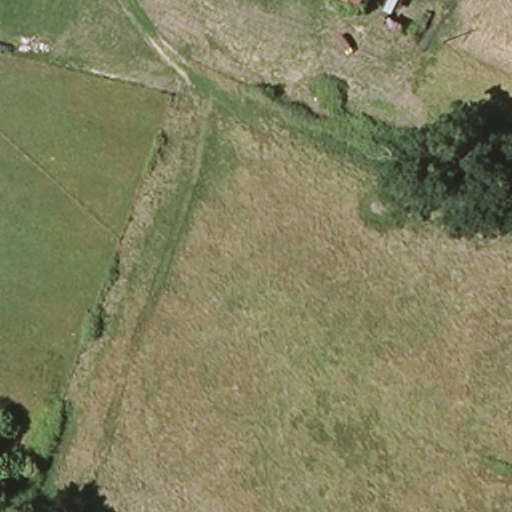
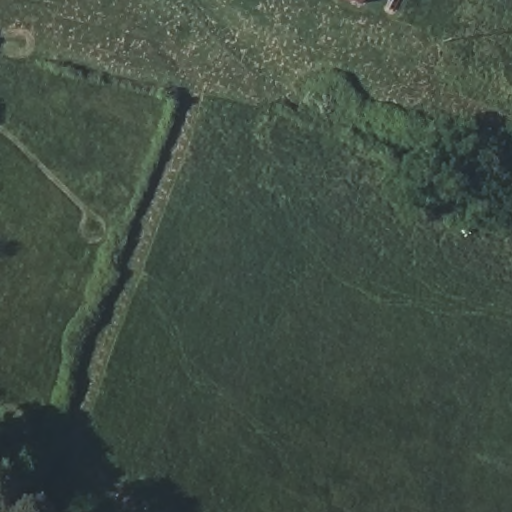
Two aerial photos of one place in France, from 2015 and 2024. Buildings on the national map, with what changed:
unchanged [(363,0),(361,4),(355,0),(363,0)]

